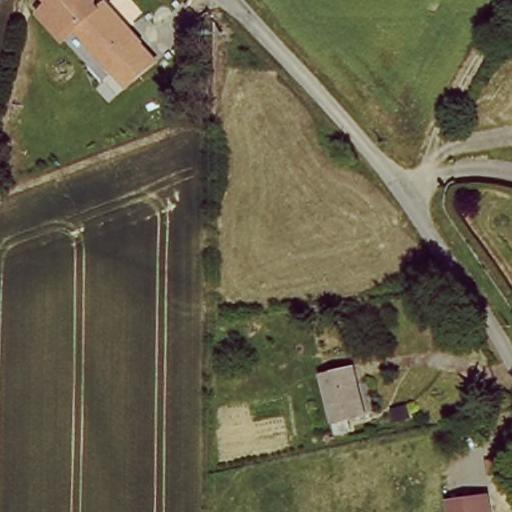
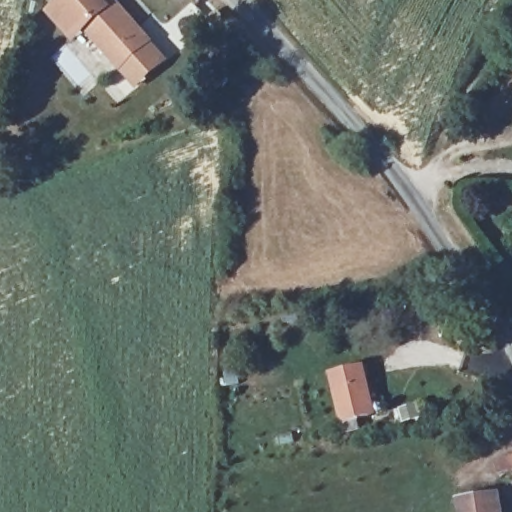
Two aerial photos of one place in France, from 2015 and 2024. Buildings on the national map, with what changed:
unchanged [(79,50),(55,24),(67,14),(63,9),(73,0),(113,0),(123,10),(120,13),(136,30),(135,30),(154,52),(124,79),(90,39),(79,50)]
unchanged [(449,323),(436,299),(448,292),(463,314),(449,323)]
unchanged [(341,426),(333,376),(366,369),(374,418),(341,426)]
unchanged [(454,498),(494,492),(498,512),(457,512),(454,498)]

